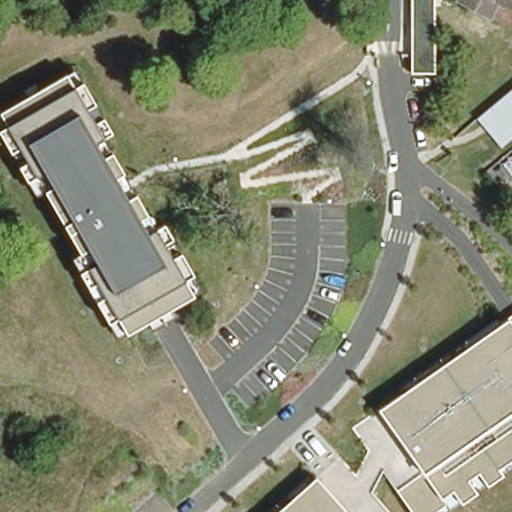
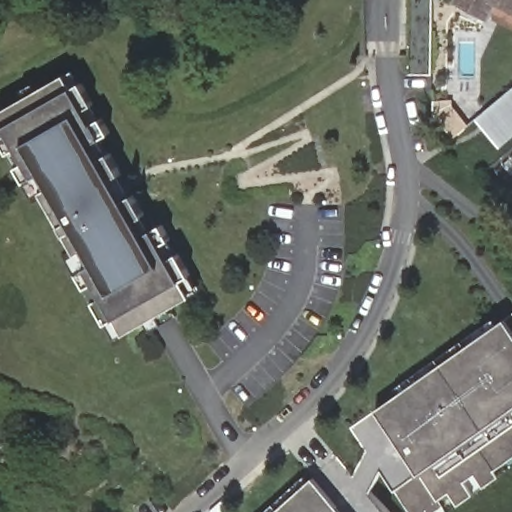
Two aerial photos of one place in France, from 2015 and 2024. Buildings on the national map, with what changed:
unchanged [(410,0),(437,0),(436,73),(410,73),(410,0)]
unchanged [(487,19),(457,5),(460,0),(512,0),(512,31),(487,19)]
unchanged [(165,221),(174,236),(163,244),(171,258),(183,251),(203,287),(171,306),(177,316),(151,331),(145,321),(115,339),(94,300),(105,294),(97,281),(87,287),(69,256),(80,250),(44,189),(34,195),(17,166),(28,160),(20,146),(8,153),(0,137),(0,128),(4,124),(0,117),(0,111),(68,72),(74,82),(84,78),(114,134),(104,139),(154,227),(165,221)]
unchanged [(512,88),(512,139),(502,147),(476,118),(512,88)]
unchanged [(315,477),(340,457),(356,472),(368,448),(353,428),(378,408),(510,318),(512,317),(512,469),(463,504),(452,488),(441,496),(446,505),(436,512),(413,512),(395,487),(382,467),(371,490),(391,511),(392,512),(277,512),(315,477)]

